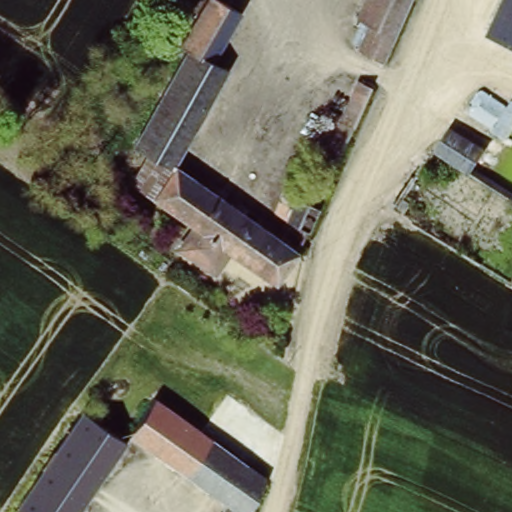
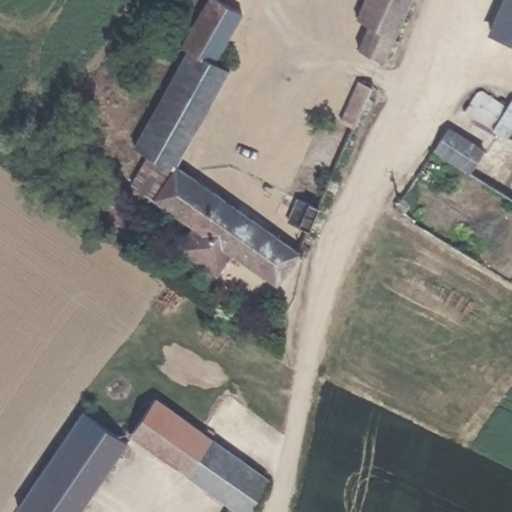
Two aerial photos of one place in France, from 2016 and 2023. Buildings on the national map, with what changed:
unchanged [(180,57),(172,51),(201,0),(211,0),(237,15),(209,63),(224,72),(170,164),(143,158),(128,147),(180,57)]
unchanged [(377,64),(350,52),(361,27),(350,22),(360,0),(405,0),(377,64)]
unchanged [(512,45),(487,35),(501,0),(512,0),(512,45)]
unchanged [(355,125),(340,117),(355,84),(371,92),(355,125)]
unchanged [(512,108),(512,136),(508,141),(467,113),(478,96),(507,115),(512,108)]
unchanged [(430,149),(445,127),(479,150),(465,172),(430,149)]
unchanged [(170,164),(297,249),(275,286),(231,257),(223,268),(188,242),(195,232),(127,186),(143,158),(170,164)]
unchanged [(309,231),(292,223),(302,200),(320,208),(309,231)]
unchanged [(152,396),(264,474),(244,512),(217,512),(223,503),(127,434),(152,396)]
unchanged [(122,439),(115,451),(120,456),(110,470),(105,466),(74,512),(27,512),(17,505),(81,410),(122,439)]

